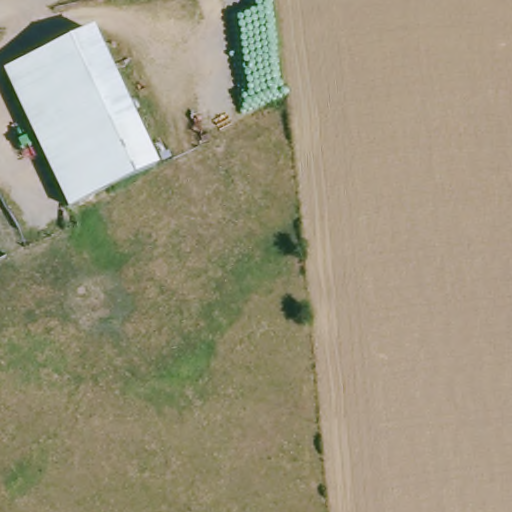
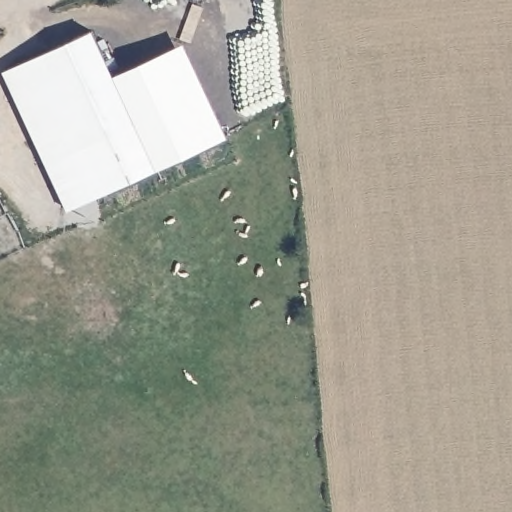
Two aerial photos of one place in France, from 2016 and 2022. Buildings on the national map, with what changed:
unchanged [(162,170),(74,209),(52,164),(10,72),(98,33),(141,125),(162,170)]
new [(227,133),(161,167),(141,125),(117,73),(185,42),(227,133)]

